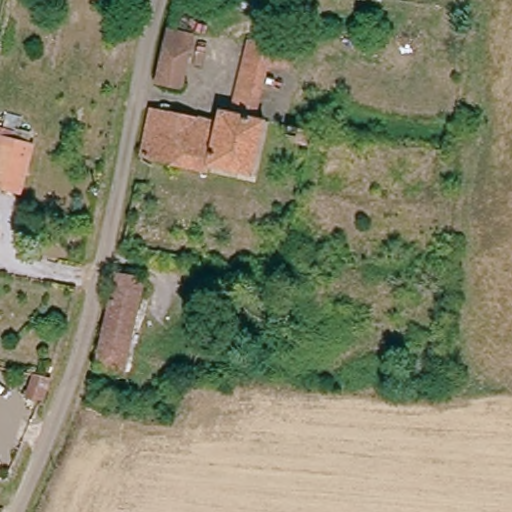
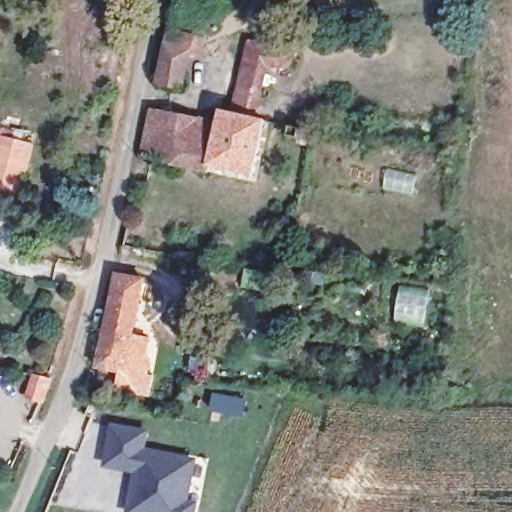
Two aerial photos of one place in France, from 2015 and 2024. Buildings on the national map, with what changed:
unchanged [(153,80),(165,42),(170,29),(190,32),(187,46),(178,84),(153,80)]
unchanged [(295,67),(270,64),(242,62),(250,39),(298,43),(295,67)]
unchanged [(254,118),(226,112),(242,62),(270,64),(254,118)]
unchanged [(149,108),(214,122),(205,162),(211,164),(209,172),(139,156),(149,108)]
unchanged [(262,120),(251,172),(211,164),(205,162),(214,122),(216,109),(226,112),(254,118),(262,120)]
unchanged [(3,130),(37,139),(22,189),(0,183),(0,142),(3,130)]
unchanged [(121,368),(95,362),(115,271),(139,277),(121,368)]
unchanged [(31,399),(35,377),(52,380),(43,400),(31,399)]
new [(132,473),(101,466),(109,423),(149,431),(145,449),(195,458),(188,500),(196,502),(195,512),(124,512),(132,473)]

